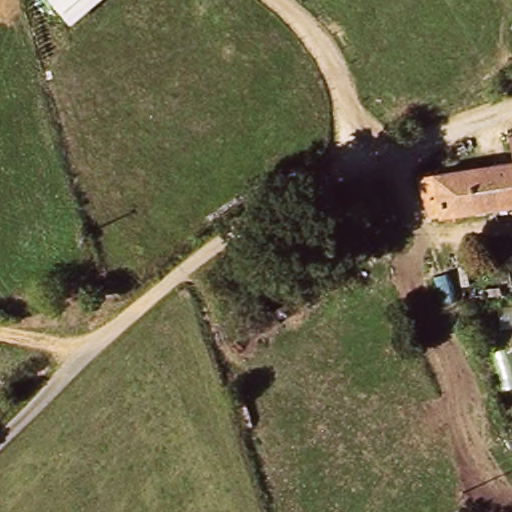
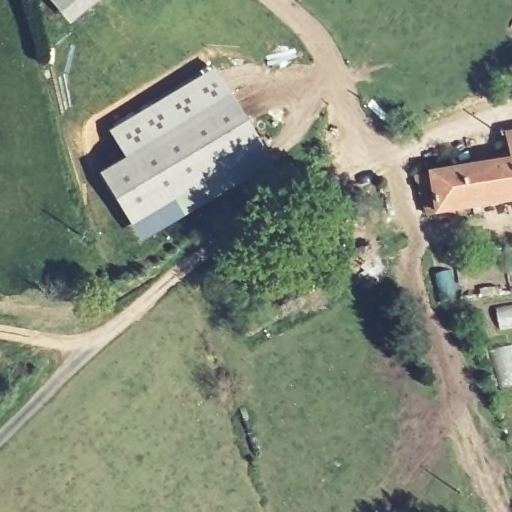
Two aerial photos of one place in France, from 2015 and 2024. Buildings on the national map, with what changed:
unchanged [(98,0),(69,25),(47,0),(98,0)]
new [(126,155),(110,129),(218,66),(271,162),(141,238),(101,170),(126,155)]
unchanged [(512,133),(512,143),(511,134),(512,133)]
unchanged [(432,216),(417,176),(435,175),(512,163),(512,206),(443,215),(432,216)]

